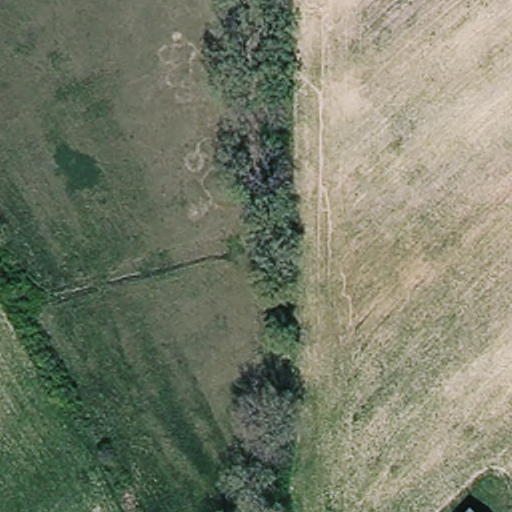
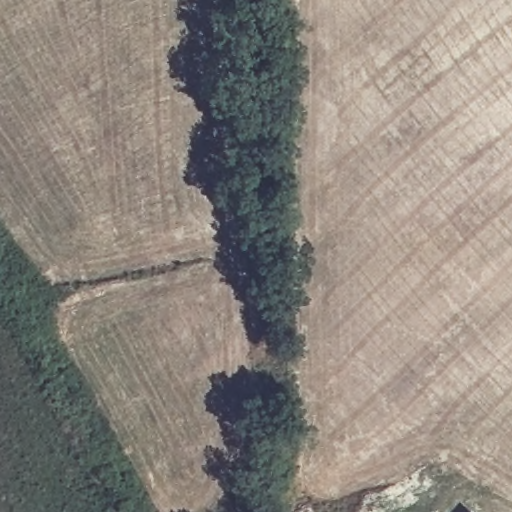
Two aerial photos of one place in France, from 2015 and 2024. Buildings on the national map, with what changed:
unchanged [(481,512),(470,512),(475,507),(481,512)]

